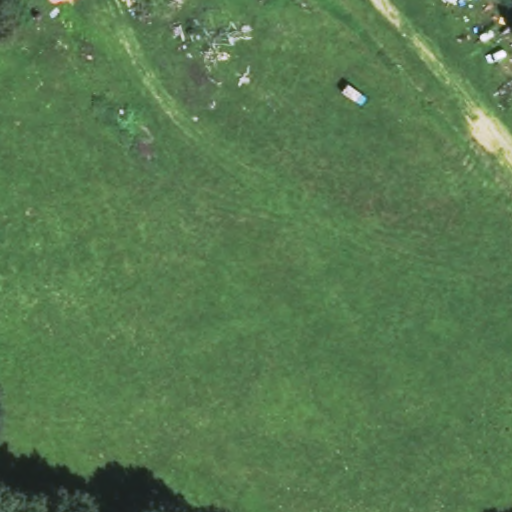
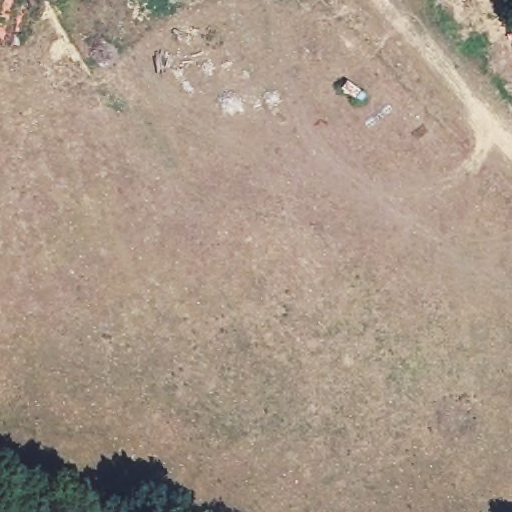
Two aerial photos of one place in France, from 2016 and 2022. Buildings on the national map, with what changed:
[]

